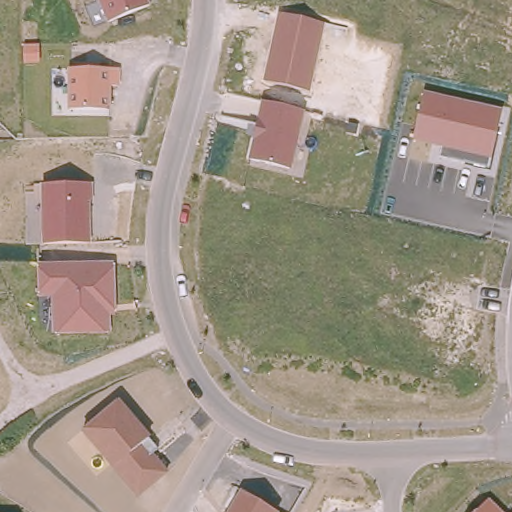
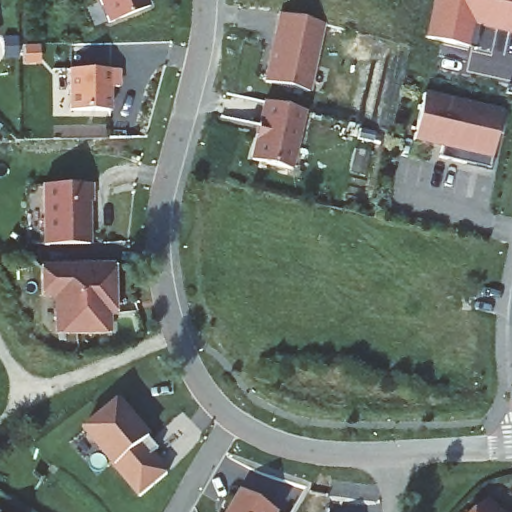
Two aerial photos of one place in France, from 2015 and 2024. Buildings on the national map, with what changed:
unchanged [(98,0),(148,0),(150,6),(108,23),(98,0)]
new [(427,25),(432,0),(512,0),(512,31),(511,31),(509,37),(478,30),(464,47),(434,41),(437,26),(427,25)]
unchanged [(325,24),(311,91),(264,81),(278,13),(325,24)]
unchanged [(110,111),(68,111),(68,70),(119,69),(119,87),(110,87),(110,111)]
unchanged [(501,109),(490,157),(487,167),(442,158),(444,147),(414,142),(425,91),(501,109)]
unchanged [(304,110),(291,169),(249,160),(261,101),(304,110)]
unchanged [(89,243),(43,245),(41,185),(93,184),(92,204),(88,204),(89,243)]
unchanged [(111,333),(53,335),(51,299),(39,299),(38,265),(115,263),(115,317),(110,317),(111,333)]
unchanged [(168,473),(137,500),(113,470),(81,432),(118,400),(149,437),(158,449),(153,455),(168,473)]
unchanged [(239,491),(278,512),(228,512),(239,491)]
unchanged [(503,512),(476,512),(489,499),(503,512)]

